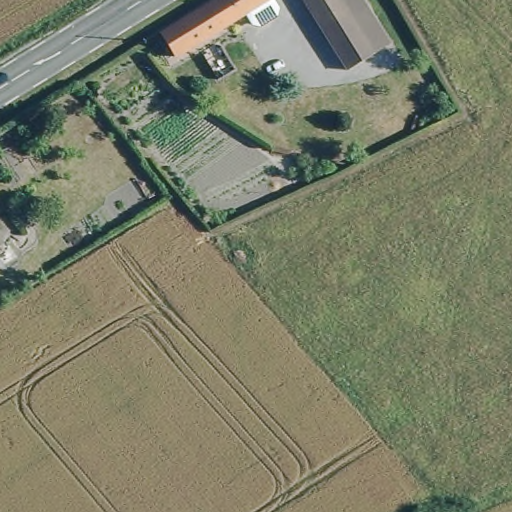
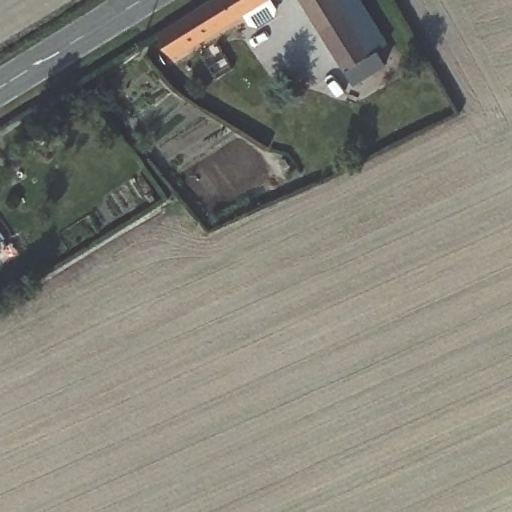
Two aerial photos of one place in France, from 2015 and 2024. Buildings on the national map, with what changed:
unchanged [(216,33),(200,9),(212,0),(270,0),(216,33)]
unchanged [(303,0),(364,0),(391,42),(345,70),(303,0)]
unchanged [(216,33),(203,42),(170,61),(153,37),(200,9),(216,33)]
unchanged [(0,262),(0,235),(12,251),(17,259),(5,268),(0,262)]

